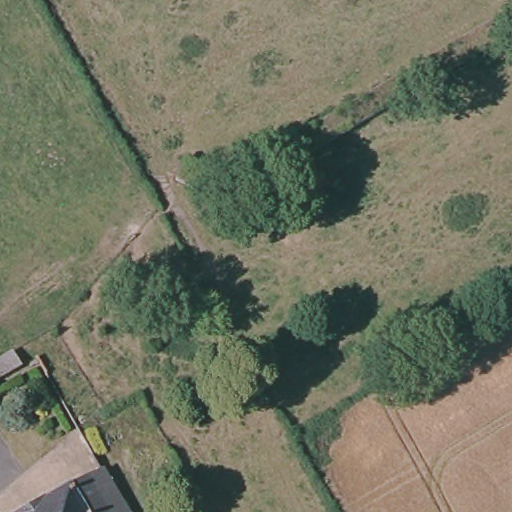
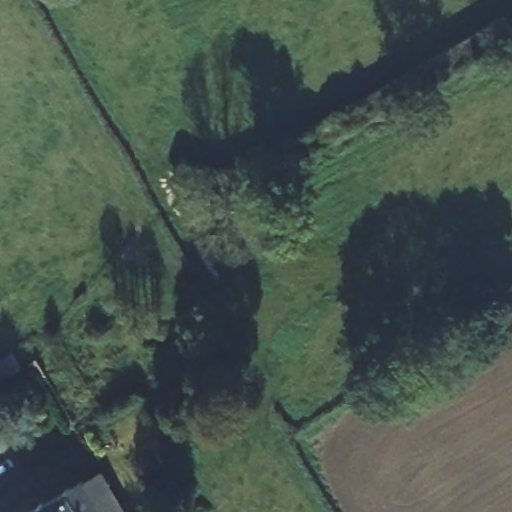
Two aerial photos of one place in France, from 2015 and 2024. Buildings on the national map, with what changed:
unchanged [(512,9),(512,42),(202,226),(187,205),(512,9)]
unchanged [(20,373),(0,386),(0,367),(13,360),(20,373)]
unchanged [(82,481),(99,470),(125,512),(21,512),(80,477),(82,481)]

